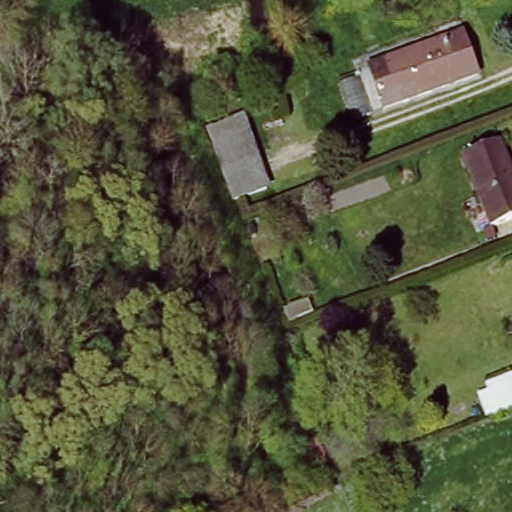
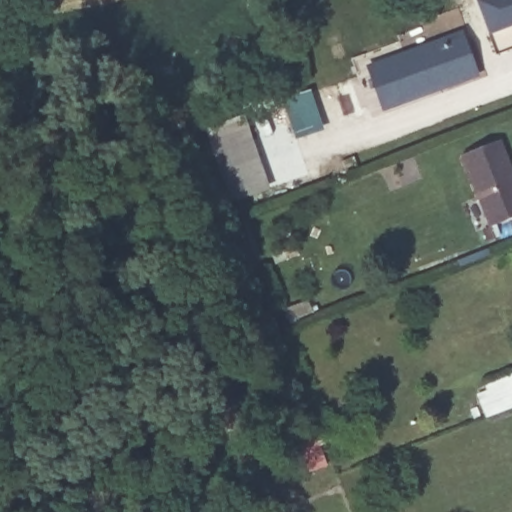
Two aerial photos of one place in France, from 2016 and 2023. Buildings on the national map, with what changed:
new [(512,0),(512,29),(490,37),(477,2),(484,0),(512,0)]
unchanged [(475,72),(389,100),(376,64),(460,32),(475,72)]
unchanged [(209,125),(243,115),(258,156),(220,170),(209,125)]
unchanged [(499,134),(512,169),(512,213),(486,222),(459,150),(499,134)]
unchanged [(258,156),(267,181),(270,188),(232,201),(230,195),(220,170),(258,156)]
unchanged [(485,419),(478,400),(490,395),(487,387),(512,377),(512,409),(485,419)]

